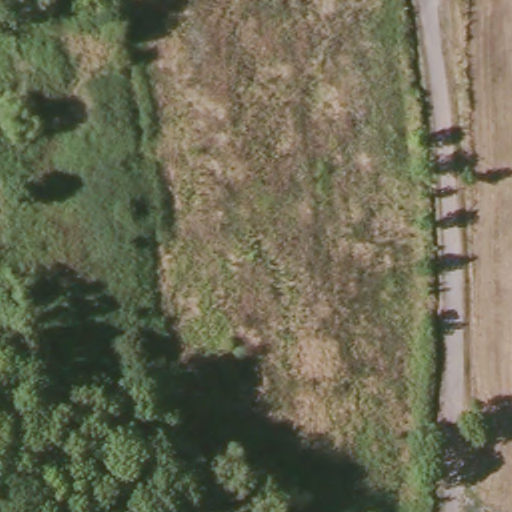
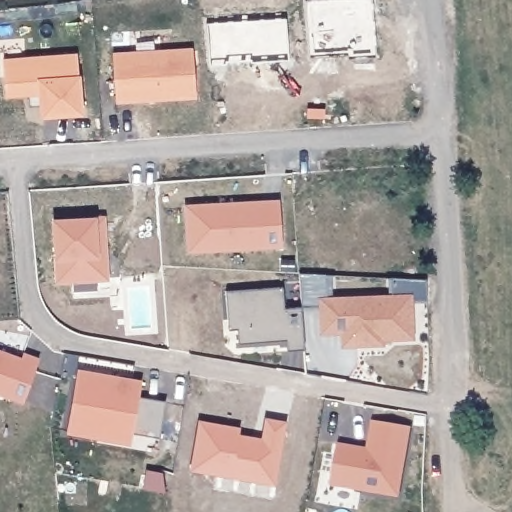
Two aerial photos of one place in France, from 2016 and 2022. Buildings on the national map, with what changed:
new [(350,57),(350,51),(312,55),(310,0),(372,0),(375,54),(350,57)]
new [(289,61),(212,64),(208,21),(290,21),(289,61)]
new [(196,99),(116,105),(112,53),(193,47),(196,99)]
new [(85,120),(41,120),(40,96),(5,99),(6,59),(79,54),(85,120)]
new [(189,251),(186,206),(217,204),(217,209),(243,206),(243,202),(279,200),(282,245),(189,251)]
new [(58,281),(54,220),(104,217),(108,278),(58,281)]
new [(300,273),(327,275),(328,297),(392,294),(392,280),(426,280),(428,301),(412,300),(415,340),(383,340),(384,346),(340,348),(340,334),(320,335),(317,307),(302,307),(300,273)]
new [(240,345),(238,329),(229,329),(226,292),(281,288),(285,308),(300,308),(303,348),(288,349),(287,342),(240,345)]
new [(0,352),(21,359),(23,354),(38,360),(24,403),(0,395),(0,352)]
new [(101,427),(100,437),(67,431),(78,370),(110,375),(118,376),(142,381),(140,395),(167,400),(160,437),(101,427)]
new [(331,485),(338,444),(360,448),(368,449),(367,453),(373,421),(410,427),(398,496),(331,485)]
new [(131,442),(100,437),(101,427),(133,432),(131,442)]

